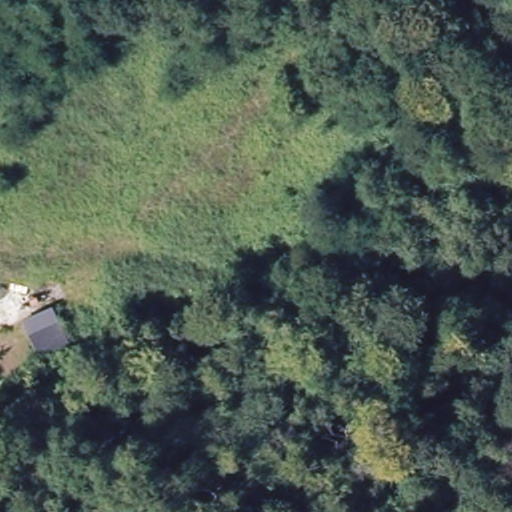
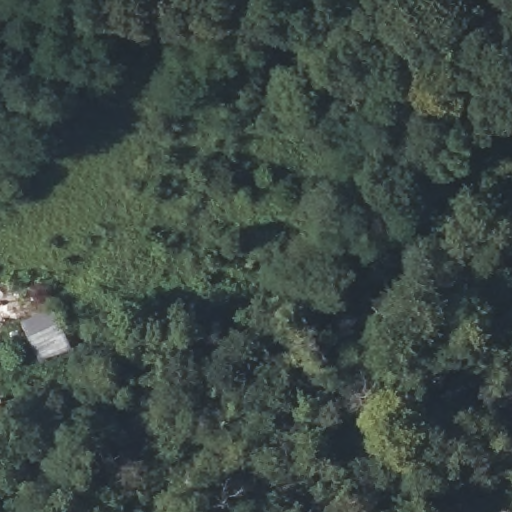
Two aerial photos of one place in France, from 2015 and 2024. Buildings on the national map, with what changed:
unchanged [(71,363),(44,375),(30,340),(57,329),(71,363)]

